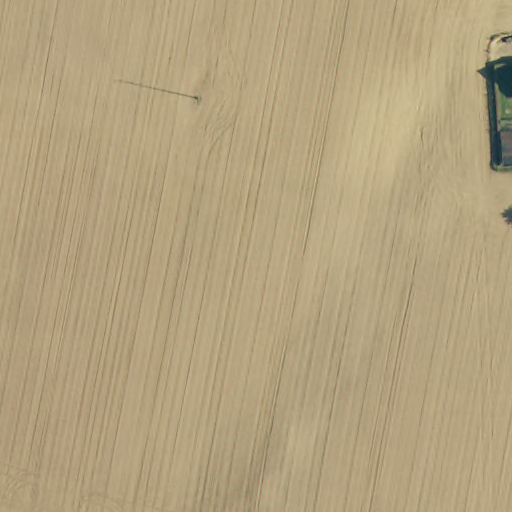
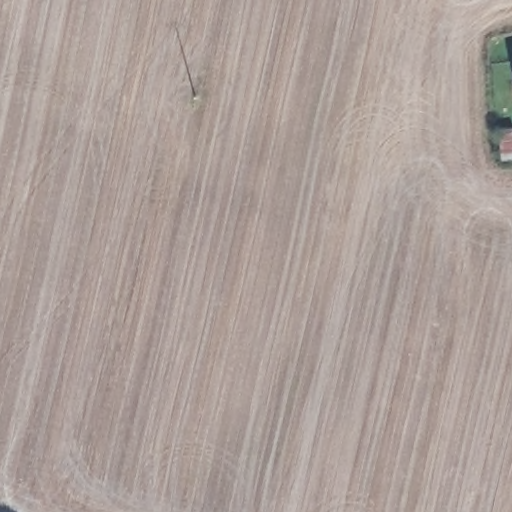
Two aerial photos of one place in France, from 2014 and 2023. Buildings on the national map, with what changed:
unchanged [(505,156),(503,135),(512,135),(512,156),(505,156)]

